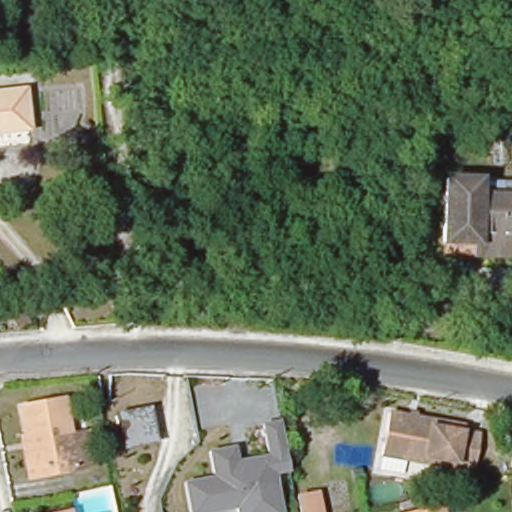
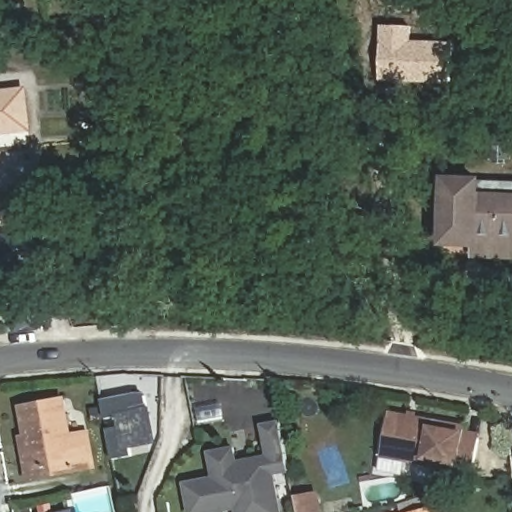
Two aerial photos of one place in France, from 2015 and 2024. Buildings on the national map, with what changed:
new [(451,42),(450,81),(379,80),(381,25),(412,26),(411,40),(451,42)]
unchanged [(34,135),(31,136),(0,139),(0,96),(25,94),(28,94),(34,135)]
unchanged [(475,248),(442,246),(444,175),(486,177),(486,195),(512,195),(512,260),(475,259),(475,248)]
unchanged [(33,471),(24,410),(67,403),(73,438),(90,436),(95,469),(78,472),(34,479),(33,471)]
unchanged [(457,471),(404,460),(401,475),(378,470),(390,412),(465,428),(464,436),(480,440),(474,467),(472,475),(457,471)]
unchanged [(158,446),(126,452),(120,421),(150,415),(158,446)]
unchanged [(213,475),(209,450),(237,445),(239,458),(267,452),(261,425),(280,420),(290,472),(277,475),(284,512),(237,512),(236,508),(219,512),(191,512),(183,480),(213,475)]
new [(296,494),(319,490),(323,512),(299,512),(296,494)]
unchanged [(442,508),(443,512),(425,512),(442,508)]

